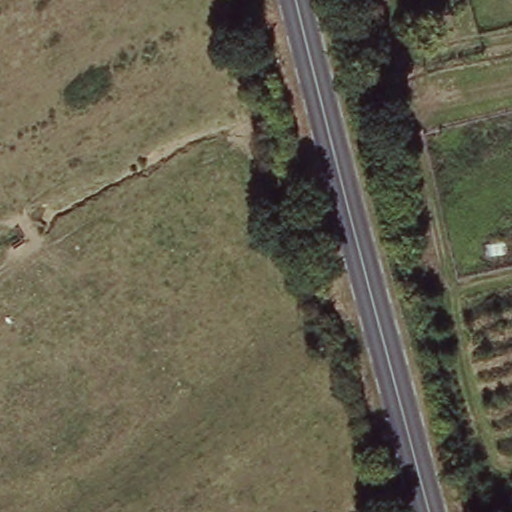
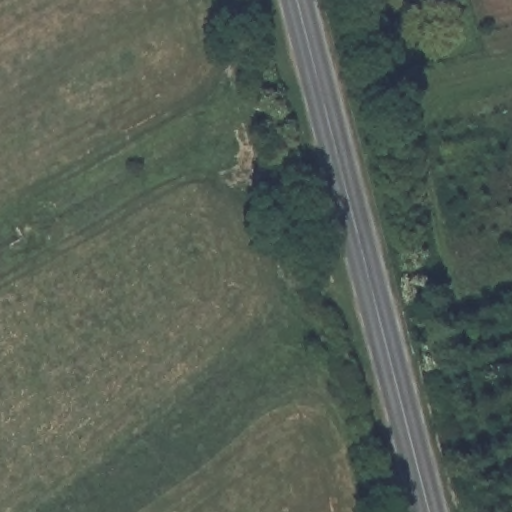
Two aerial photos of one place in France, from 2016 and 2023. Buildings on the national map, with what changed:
[]

